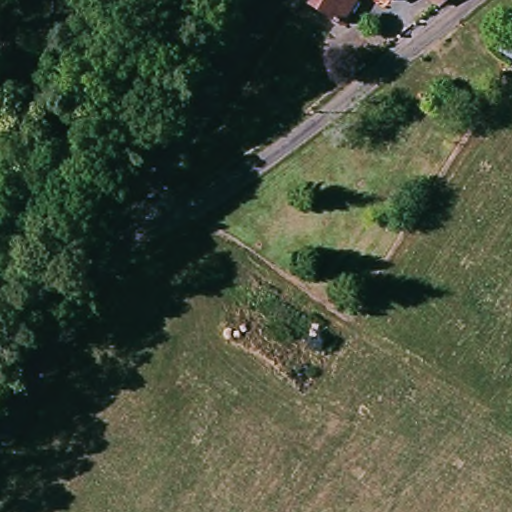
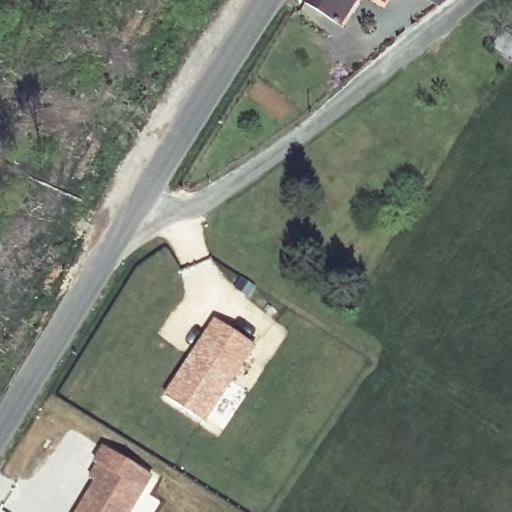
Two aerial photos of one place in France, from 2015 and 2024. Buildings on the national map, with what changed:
unchanged [(333,22),(302,2),(304,0),(348,0),(333,22)]
new [(213,317),(256,346),(241,372),(204,424),(162,395),(213,317)]
new [(86,474),(93,464),(91,462),(102,445),(153,476),(145,491),(160,501),(153,512),(74,512),(93,480),(86,474)]

